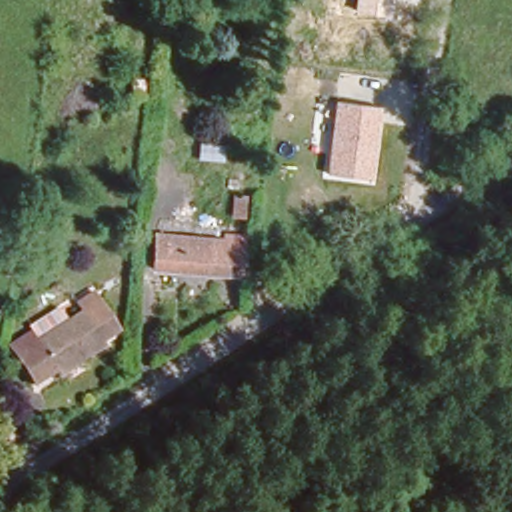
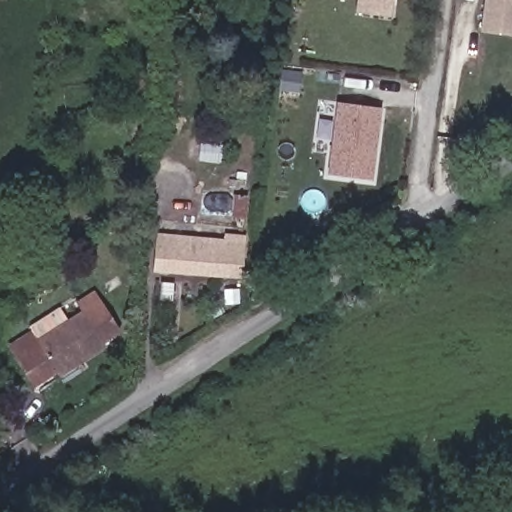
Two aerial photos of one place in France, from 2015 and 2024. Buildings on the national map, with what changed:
unchanged [(355,13),(357,0),(395,0),(393,16),(355,13)]
new [(483,28),(487,0),(512,0),(512,32),(483,28)]
unchanged [(373,179),(327,175),(336,101),(382,106),(373,179)]
unchanged [(245,205),(225,204),(226,182),(245,183),(245,205)]
unchanged [(140,263),(141,244),(157,245),(158,232),(245,238),(242,275),(155,270),(140,269),(140,264),(140,263)]
unchanged [(13,359),(12,346),(29,334),(35,342),(81,309),(75,301),(94,288),(116,324),(99,337),(102,343),(81,358),(77,353),(30,385),(13,359)]

